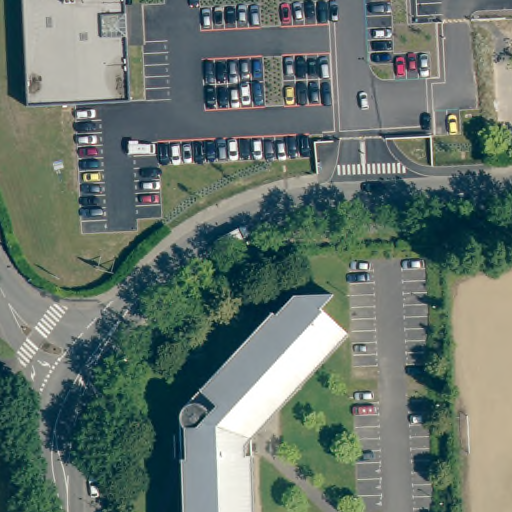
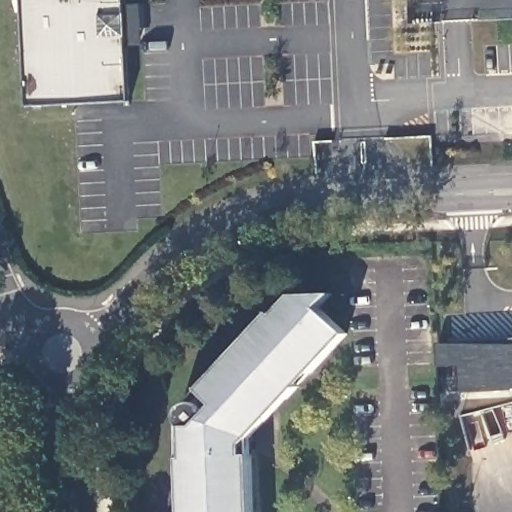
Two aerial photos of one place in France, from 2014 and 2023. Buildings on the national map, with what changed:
unchanged [(141,49),(126,49),(129,104),(27,110),(22,0),(124,0),(124,8),(139,8),(141,49)]
unchanged [(181,461),(181,428),(180,427),(179,425),(178,424),(177,422),(176,421),(175,417),(175,415),(174,414),(174,412),(174,410),(175,408),(175,406),(175,404),(176,403),(177,401),(179,400),(180,399),(182,398),(184,398),(187,397),(191,396),(202,384),(199,380),(270,305),(273,307),(292,286),(331,290),(316,307),(346,335),(308,376),(297,388),(284,403),(250,440),(248,442),(250,512),(178,512),(176,462),(181,461)]
new [(512,339),(512,390),(461,392),(458,366),(439,366),(438,344),(512,339)]

